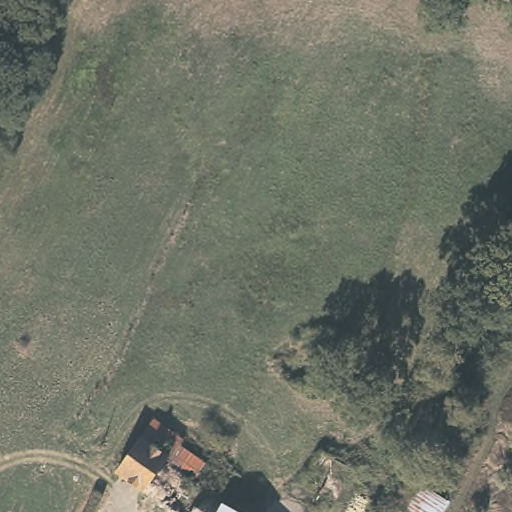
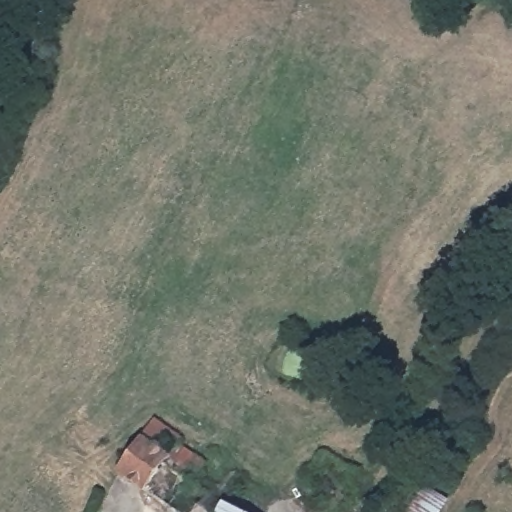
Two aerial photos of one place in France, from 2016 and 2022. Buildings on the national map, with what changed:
unchanged [(132,447),(166,467),(170,462),(227,500),(218,512),(156,512),(110,481),(132,447)]
unchanged [(244,512),(218,512),(227,500),(244,512)]

